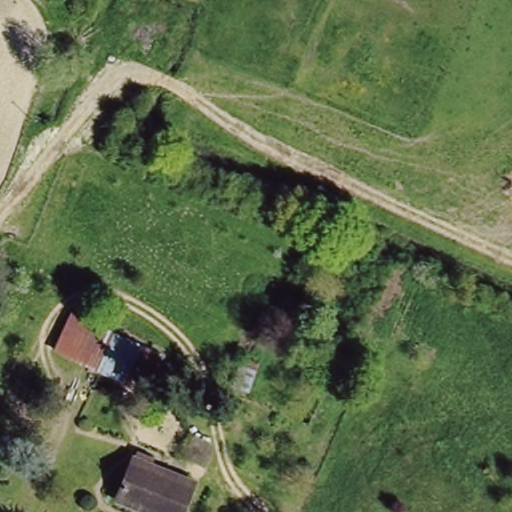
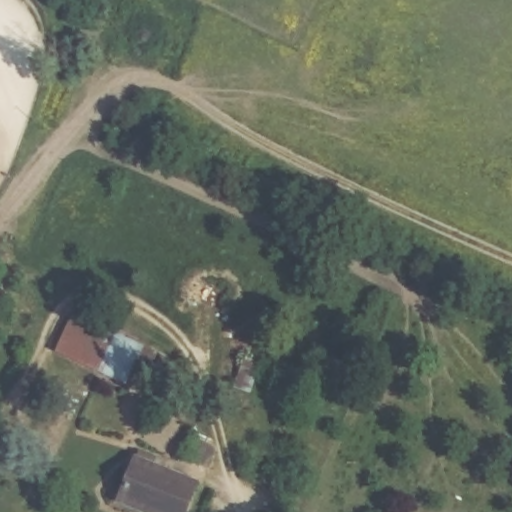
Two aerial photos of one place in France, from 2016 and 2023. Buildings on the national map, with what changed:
unchanged [(132,355),(122,378),(99,367),(52,345),(65,317),(70,307),(160,350),(156,359),(153,365),(132,355)]
unchanged [(202,481),(189,512),(158,512),(122,497),(140,455),(143,447),(160,454),(156,462),(164,465),(202,481)]

